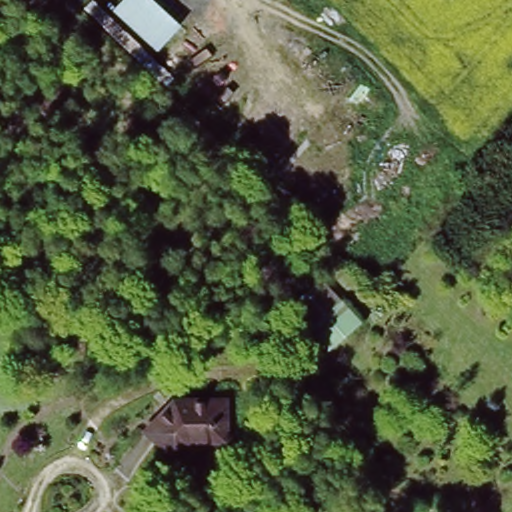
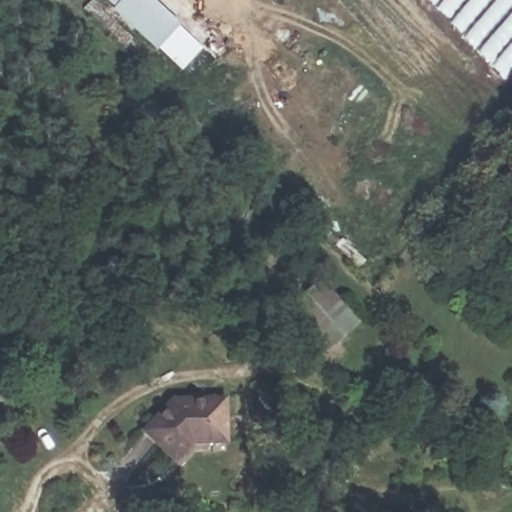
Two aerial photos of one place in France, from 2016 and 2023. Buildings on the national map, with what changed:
unchanged [(156,0),(181,24),(157,49),(112,7),(119,0),(156,0)]
new [(429,0),(512,0),(512,69),(504,78),(429,0)]
unchanged [(364,319),(327,350),(286,306),(322,274),(364,319)]
unchanged [(228,433),(196,435),(177,453),(147,424),(176,392),(228,392),(228,433)]

